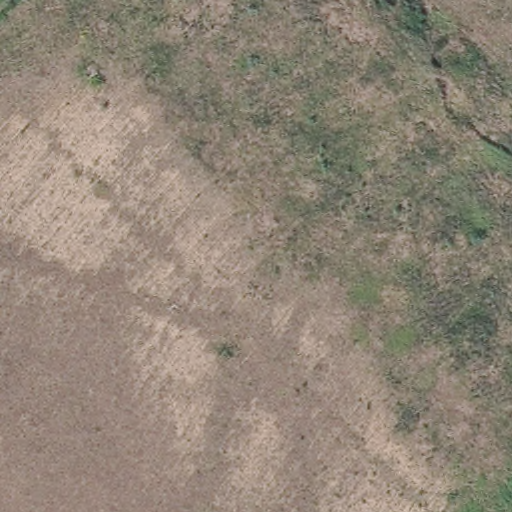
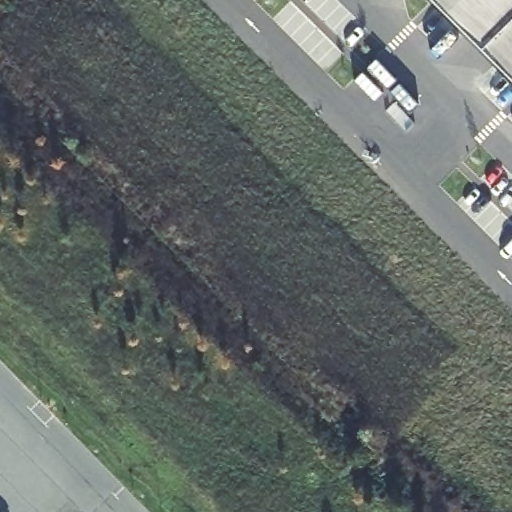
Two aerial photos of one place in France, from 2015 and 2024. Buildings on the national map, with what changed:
new [(512,0),(512,74),(437,0),(512,0)]

